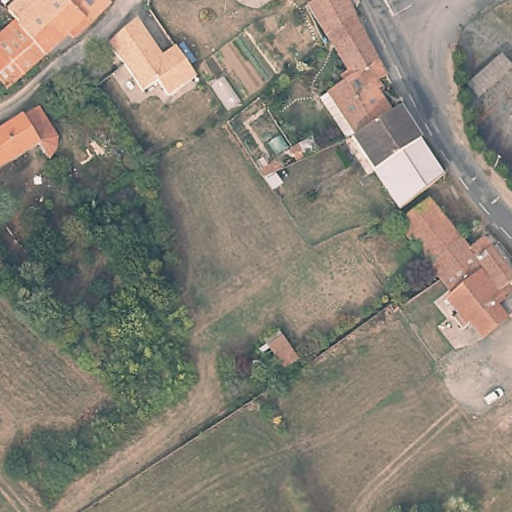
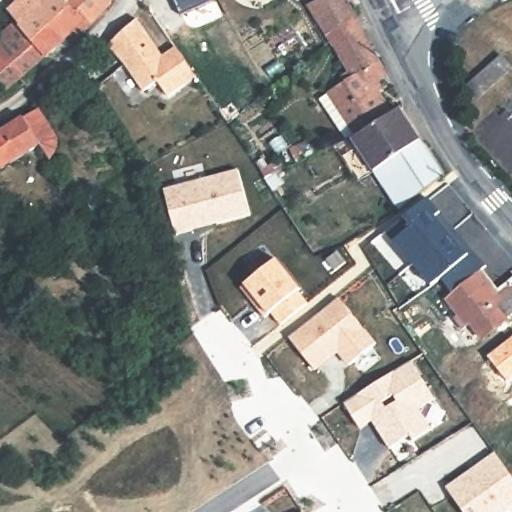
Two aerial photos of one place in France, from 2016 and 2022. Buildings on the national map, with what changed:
unchanged [(46,54),(44,57),(25,74),(7,90),(4,86),(0,82),(0,30),(10,21),(4,14),(19,0),(104,0),(107,2),(110,5),(89,25),(87,23),(84,20),(46,54)]
unchanged [(107,2),(104,0),(109,0),(107,2)]
unchanged [(311,11),(306,4),(313,0),(347,0),(361,27),(335,45),(311,11)]
unchanged [(161,80),(144,92),(123,66),(106,47),(140,20),(165,56),(180,46),(200,74),(171,94),(161,80)]
unchanged [(367,41),(375,57),(386,73),(372,82),(392,112),(361,132),(330,90),(346,78),(343,72),(350,67),(335,45),(361,27),(367,41)]
unchanged [(508,64),(476,93),(466,80),(498,52),(508,64)]
unchanged [(22,114),(37,104),(54,129),(42,138),(48,144),(36,152),(31,146),(0,168),(0,126),(20,113),(22,114)]
unchanged [(392,112),(400,108),(421,139),(378,168),(375,163),(357,135),(361,132),(392,112)]
unchanged [(421,139),(443,175),(425,190),(401,208),(378,168),(421,139)]
new [(251,215),(175,235),(164,188),(239,169),(251,215)]
unchanged [(458,234),(460,239),(429,260),(421,247),(411,236),(400,225),(397,222),(430,196),(458,234)]
unchanged [(425,265),(430,262),(429,260),(460,239),(463,238),(470,247),(483,237),(512,270),(512,280),(501,290),(481,266),(455,289),(450,285),(443,277),(441,273),(435,277),(430,272),(425,265)]
new [(244,285),(277,259),(300,289),(309,301),(280,324),(271,313),(269,314),(244,285)]
unchanged [(481,266),(501,290),(512,280),(512,310),(508,314),(508,316),(483,335),(472,320),(468,322),(448,296),(450,294),(446,289),(450,285),(455,289),(481,266)]
new [(339,297),(376,341),(347,364),(337,354),(316,370),(288,337),(339,297)]
new [(420,408),(431,428),(413,440),(409,433),(388,447),(372,421),(360,429),(345,402),(410,361),(434,399),(420,408)]
new [(512,474),(512,508),(506,512),(464,512),(445,486),(495,450),(512,474)]
new [(304,512),(302,512),(303,511),(304,512)]

